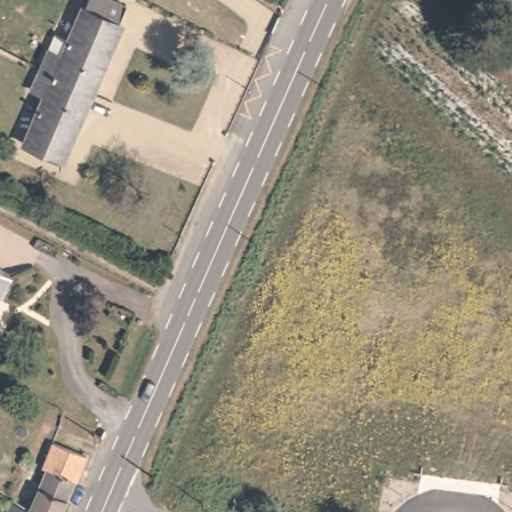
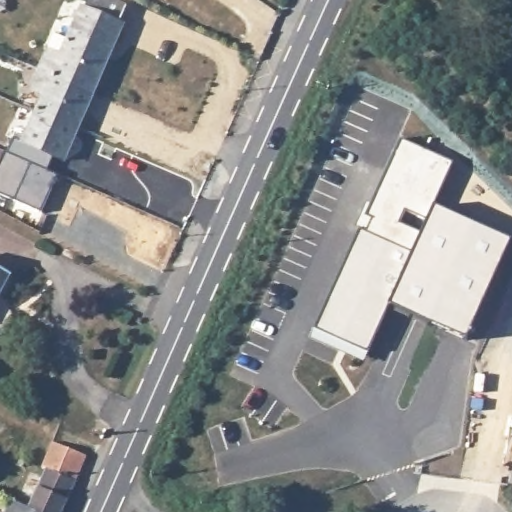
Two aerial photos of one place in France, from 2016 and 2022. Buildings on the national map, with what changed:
unchanged [(83,6),(85,6),(89,0),(112,0),(127,6),(120,21),(124,23),(93,91),(40,68),(48,51),(55,34),(68,39),(83,6)]
unchanged [(93,91),(64,161),(23,143),(44,95),(31,89),(40,68),(93,91)]
new [(0,193),(0,164),(5,152),(57,175),(41,212),(0,193)]
new [(464,339),(388,305),(412,252),(433,206),(509,240),(464,339)]
new [(367,353),(314,329),(359,228),(412,252),(388,305),(367,353)]
unchanged [(0,292),(0,265),(11,271),(0,292)]
unchanged [(25,505),(41,465),(38,464),(47,438),(83,453),(57,512),(36,512),(25,505)]
unchanged [(10,496),(25,505),(36,512),(2,512),(10,496)]

